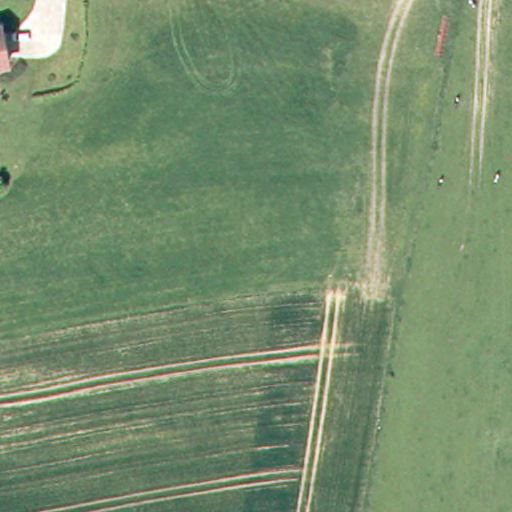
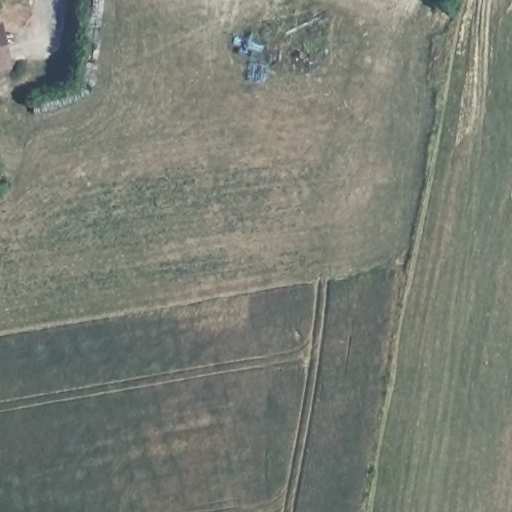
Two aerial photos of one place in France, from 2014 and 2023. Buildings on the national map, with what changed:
unchanged [(11,60),(0,63),(0,21),(4,20),(11,60)]

